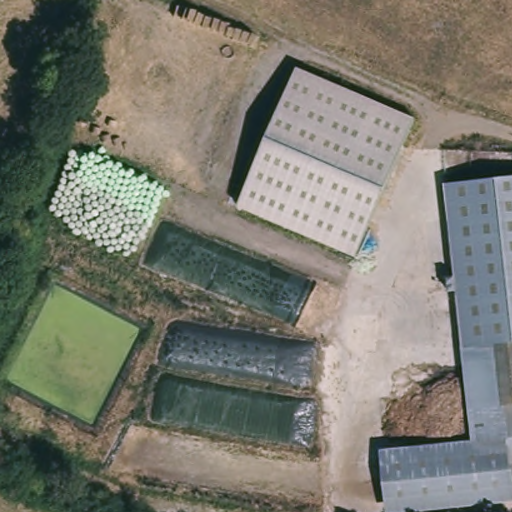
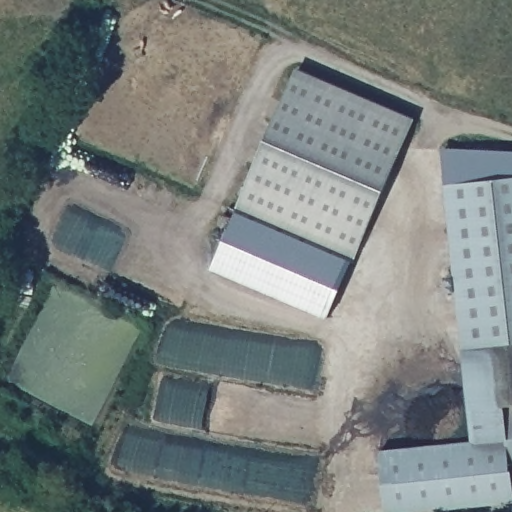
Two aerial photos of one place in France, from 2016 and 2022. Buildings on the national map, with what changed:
unchanged [(239,206),(297,67),(414,118),(356,257),(239,206)]
unchanged [(458,263),(446,184),(512,173),(512,336),(470,343),(458,263)]
new [(215,266),(239,210),(348,258),(324,313),(215,266)]
unchanged [(512,336),(512,397),(511,397),(478,402),(470,343),(512,336)]
unchanged [(394,449),(483,436),(478,402),(511,397),(511,399),(512,402),(512,484),(401,502),(394,449)]
unchanged [(512,398),(512,402),(511,399),(512,398)]
unchanged [(401,502),(512,484),(512,495),(403,512),(401,502)]

